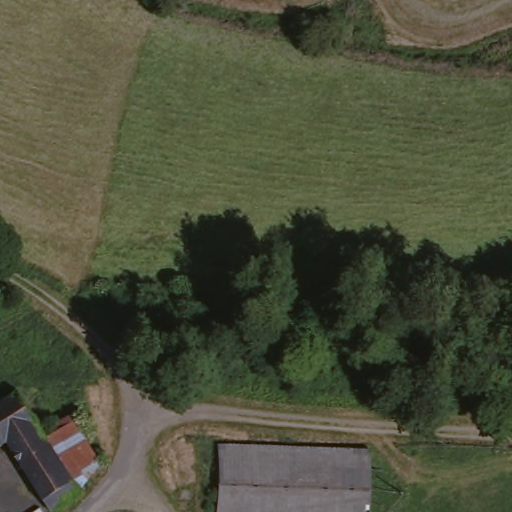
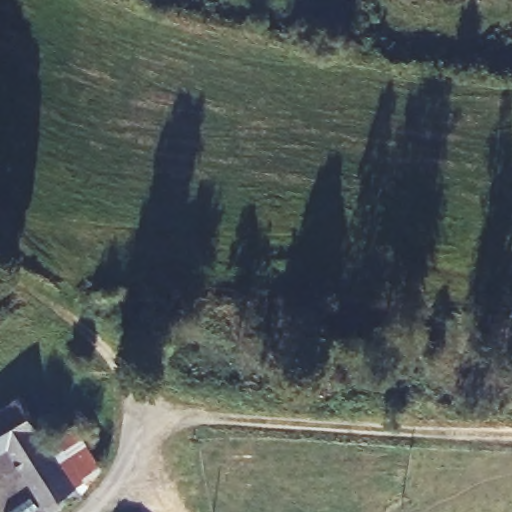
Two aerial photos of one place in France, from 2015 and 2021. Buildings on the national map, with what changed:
unchanged [(90,489),(60,509),(12,446),(0,454),(0,401),(17,389),(45,427),(81,476),(90,489)]
unchanged [(73,409),(106,457),(81,476),(45,427),(73,409)]
demolished [(379,454),(375,512),(223,512),(228,443),(379,454)]

